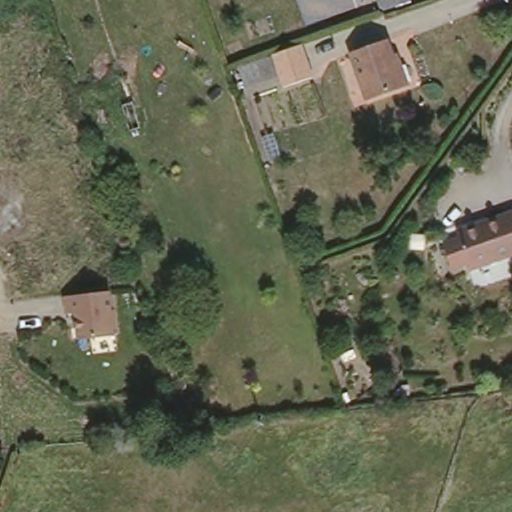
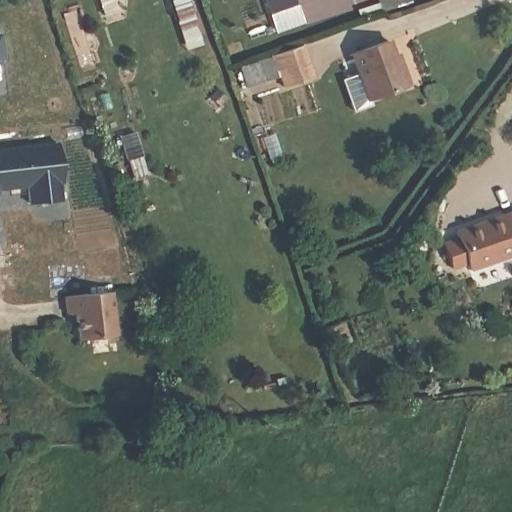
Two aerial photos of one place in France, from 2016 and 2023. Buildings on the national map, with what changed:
demolished [(376,4),(375,0),(389,0),(376,4)]
new [(411,2),(380,14),(375,0),(411,0),(411,2)]
unchanged [(388,35),(400,69),(405,67),(412,89),(369,104),(350,48),(388,35)]
new [(2,58),(0,59),(0,38),(2,58)]
unchanged [(300,44),(312,81),(286,90),(281,75),(240,88),(233,66),(300,44)]
new [(57,142),(61,181),(58,181),(60,199),(28,202),(26,184),(7,186),(7,183),(0,185),(0,149),(57,142)]
unchanged [(457,239),(454,231),(512,212),(512,257),(468,272),(466,265),(451,270),(442,244),(457,239)]
unchanged [(115,333),(75,337),(73,311),(64,312),(63,294),(110,290),(115,333)]

